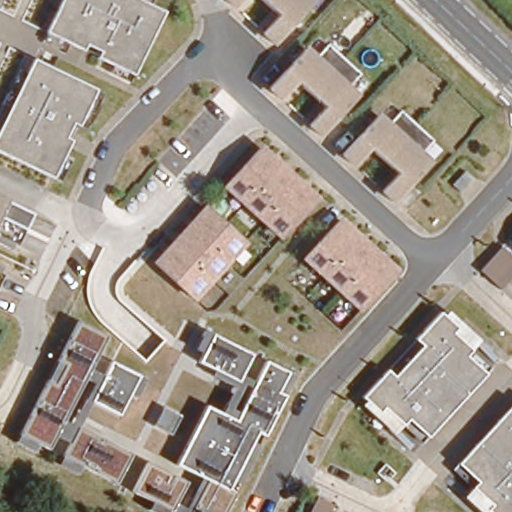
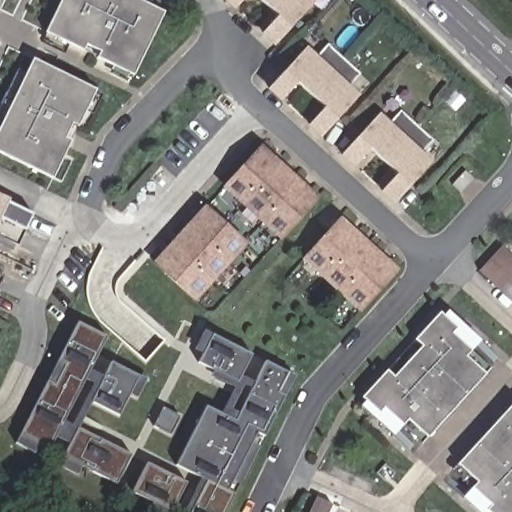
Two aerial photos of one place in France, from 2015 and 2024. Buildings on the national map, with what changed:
unchanged [(43,32),(59,0),(140,0),(165,12),(135,78),(43,32)]
unchanged [(222,0),(245,0),(233,11),(222,0)]
unchanged [(274,47),(258,33),(272,16),(255,0),(308,0),(315,5),(274,47)]
unchanged [(349,88),(358,96),(320,140),(304,125),(320,109),(296,85),(279,104),(265,90),(306,46),(316,56),(327,42),(362,73),(349,88)]
unchanged [(0,156),(0,121),(30,61),(94,91),(51,180),(0,156)]
unchanged [(422,155),(431,165),(395,205),(378,189),(394,172),(368,150),(353,168),(338,157),(379,114),(388,122),(400,108),(432,142),(422,155)]
unchanged [(282,243),(221,190),(261,147),(318,199),(282,243)]
unchanged [(0,238),(0,197),(34,214),(18,248),(0,238)]
unchanged [(196,306),(149,264),(202,206),(251,249),(196,306)]
unchanged [(359,318),(299,261),(340,218),(403,275),(359,318)]
unchanged [(503,294),(481,273),(502,250),(512,260),(512,285),(503,294)]
unchanged [(0,292),(0,275),(6,278),(0,292)]
unchanged [(428,443),(406,426),(396,436),(356,404),(390,368),(394,372),(416,345),(411,341),(440,308),(480,342),(472,353),(489,371),(428,443)]
unchanged [(121,420),(92,406),(81,431),(130,456),(117,486),(82,466),(78,477),(55,467),(65,445),(59,442),(52,459),(18,442),(75,321),(109,337),(92,371),(104,377),(111,363),(142,378),(121,420)]
unchanged [(266,439),(257,436),(252,446),(259,449),(243,485),(233,481),(228,491),(235,495),(227,512),(149,512),(148,512),(152,505),(131,494),(144,462),(196,487),(201,481),(177,469),(205,407),(220,414),(232,388),(212,377),(213,375),(197,366),(202,353),(193,349),(203,332),(253,356),(240,378),(253,386),(264,362),(297,376),(266,439)]
unchanged [(460,499),(472,483),(455,466),(512,403),(512,512),(476,512),(460,499)]
unchanged [(171,435),(154,427),(165,407),(181,415),(171,435)]
unchanged [(312,499),(334,508),(333,512),(308,512),(312,499)]

